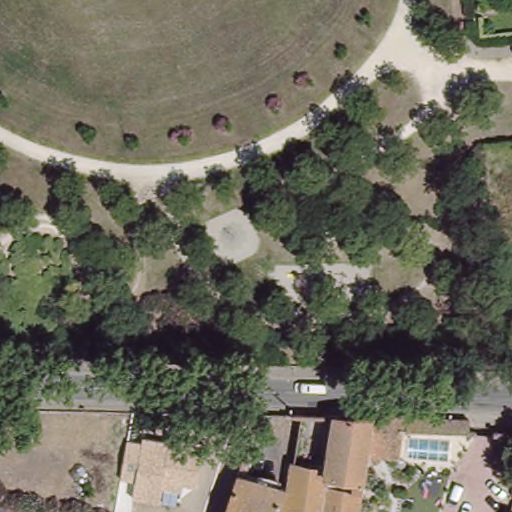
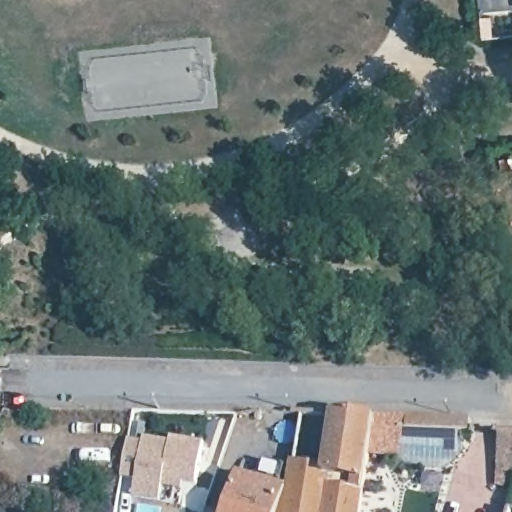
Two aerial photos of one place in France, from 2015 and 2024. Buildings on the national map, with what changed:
unchanged [(474,417),(472,433),(407,434),(407,459),(374,460),(366,512),(223,512),(238,468),(285,484),(293,458),(324,461),(331,411),(377,413),(474,417)]
unchanged [(203,485),(184,483),(183,488),(165,486),(161,502),(134,497),(136,478),(122,476),(127,441),(142,442),(142,438),(169,442),(170,436),(208,440),(203,485)]
unchanged [(506,512),(512,491),(512,512),(506,512)]

